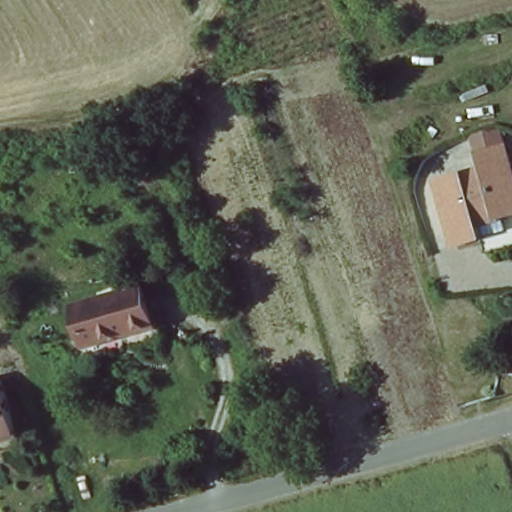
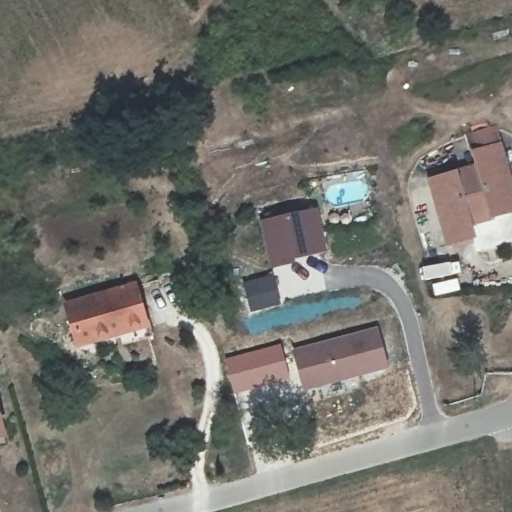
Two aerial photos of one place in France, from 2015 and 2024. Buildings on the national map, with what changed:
unchanged [(477,158),(474,146),(499,140),(512,189),(512,230),(477,241),(472,227),(449,232),(432,170),(477,158)]
new [(270,270),(260,222),(318,209),(327,253),(294,260),(296,266),(270,270)]
unchanged [(67,302),(137,282),(147,322),(79,341),(67,302)]
new [(303,391),(292,350),(378,327),(388,369),(303,391)]
unchanged [(0,431),(0,411),(5,430),(0,431)]

